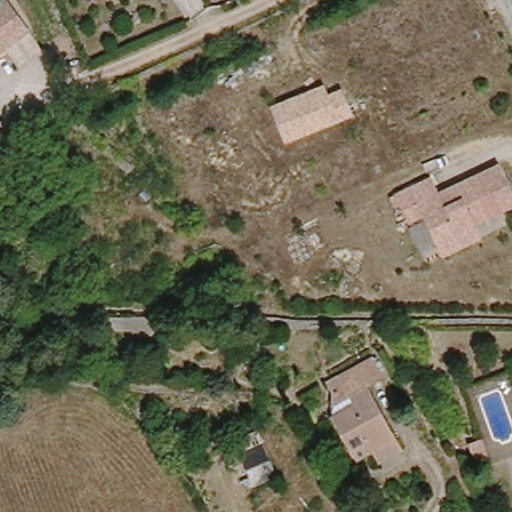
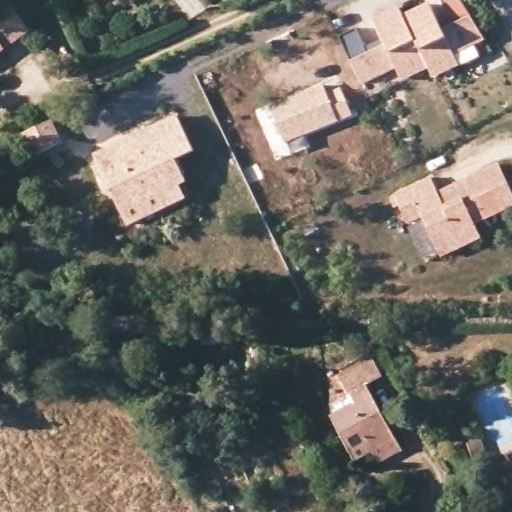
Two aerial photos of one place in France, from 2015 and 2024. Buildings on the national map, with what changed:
unchanged [(31,26),(0,48),(0,0),(12,0),(31,26)]
new [(429,2),(443,30),(454,24),(442,0),(461,0),(471,16),(486,40),(455,55),(460,65),(434,77),(430,70),(405,15),(429,2)]
new [(405,17),(430,70),(403,81),(397,67),(362,85),(338,35),(357,26),(365,45),(379,31),(372,15),(400,4),(405,17)]
unchanged [(324,85),(327,95),(342,90),(353,116),(285,144),(270,106),(324,85)]
new [(195,151),(177,161),(187,182),(180,185),(187,199),(129,225),(93,153),(176,114),(195,151)]
new [(52,120),(60,140),(34,152),(25,132),(52,120)]
unchanged [(512,190),(512,208),(482,221),(489,234),(442,252),(425,216),(408,224),(395,192),(437,171),(444,187),(500,161),(512,190)]
unchanged [(174,320),(172,330),(106,332),(102,319),(174,320)]
unchanged [(352,465),(332,419),(354,408),(349,398),(339,376),(375,360),(385,381),(375,385),(370,388),(396,445),(382,451),(370,456),(352,465)]

